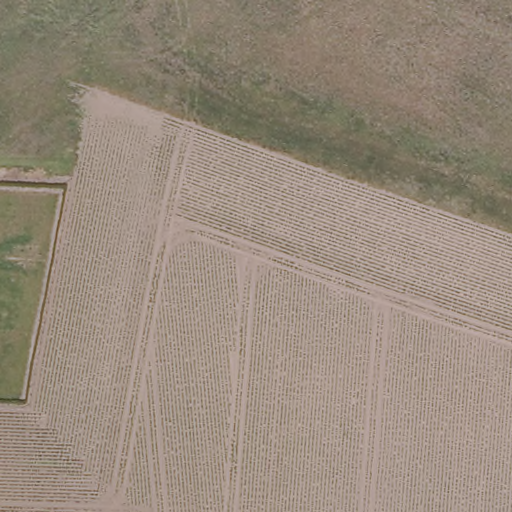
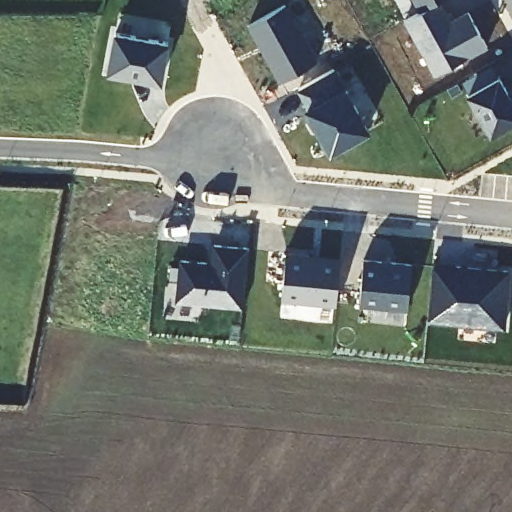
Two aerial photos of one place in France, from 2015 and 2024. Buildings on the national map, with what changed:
new [(405,20),(420,10),(438,0),(442,0),(452,18),(468,11),(487,46),(434,75),(401,38),(405,20)]
new [(415,0),(439,0),(420,10),(415,0)]
new [(285,5),(316,61),(281,81),(249,25),(285,5)]
new [(116,32),(168,42),(161,81),(109,71),(116,32)]
new [(371,130),(330,153),(305,107),(308,106),(298,89),(336,68),(346,85),(371,130)]
new [(512,96),(512,122),(490,134),(467,93),(500,75),(512,96)]
new [(207,263),(207,266),(213,267),(215,245),(249,248),(243,306),(177,300),(181,260),(207,263)]
new [(336,305),(281,301),(287,250),(341,258),(336,305)]
new [(364,260),(412,264),(408,309),(360,305),(364,260)]
new [(461,267),(460,270),(468,271),(468,268),(510,271),(504,327),(497,326),(460,323),(428,320),(433,264),(461,267)]

